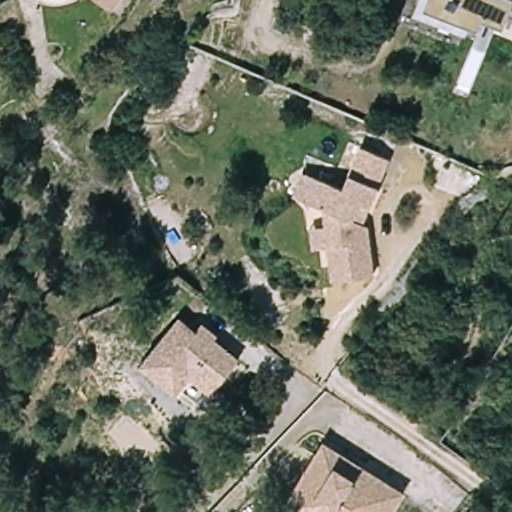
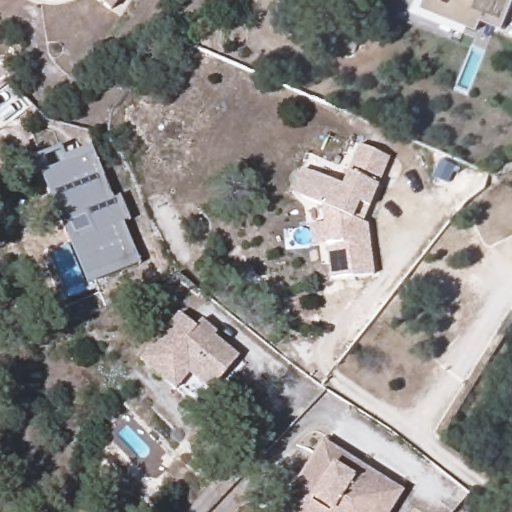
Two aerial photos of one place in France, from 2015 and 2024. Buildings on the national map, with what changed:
unchanged [(101,0),(116,0),(111,6),(101,0)]
unchanged [(425,0),(511,0),(512,0),(500,30),(479,22),(475,33),(420,10),(425,0)]
unchanged [(371,220),(377,270),(333,276),(329,241),(314,243),(311,222),(326,221),(325,203),(294,190),(304,165),(344,183),(351,169),(350,169),(362,141),(393,155),(381,181),(382,182),(372,204),(365,219),(371,220)]
new [(118,197),(128,220),(122,222),(139,263),(87,285),(32,159),(60,147),(65,157),(89,146),(113,199),(118,197)]
unchanged [(182,393),(177,399),(142,368),(163,342),(181,320),(199,336),(205,326),(221,338),(217,343),(242,363),(212,398),(209,402),(203,410),(182,393)]
unchanged [(283,506),(291,492),(325,439),(406,490),(395,507),(393,512),(293,512),(283,506)]

